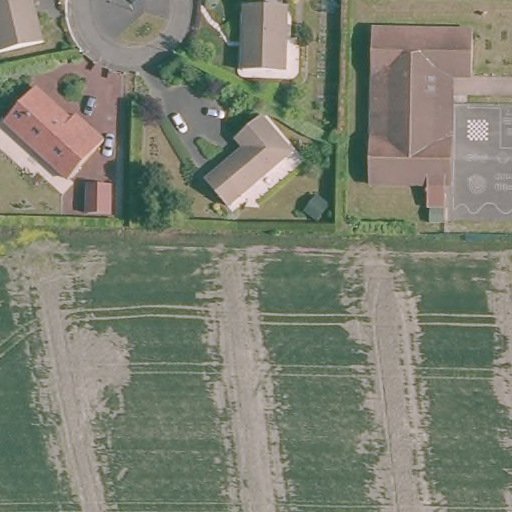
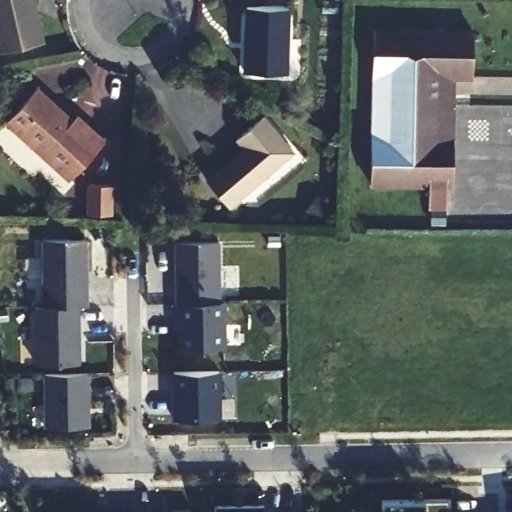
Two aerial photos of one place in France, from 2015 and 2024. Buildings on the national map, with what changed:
unchanged [(0,47),(0,0),(34,0),(40,40),(0,50),(0,47)]
unchanged [(240,71),(240,3),(285,4),(281,71),(240,71)]
unchanged [(429,178),(367,177),(372,23),(472,26),(470,70),(452,69),(449,132),(447,179),(429,178)]
unchanged [(4,122),(32,89),(80,130),(87,124),(103,140),(69,177),(4,122)]
unchanged [(212,176),(247,151),(237,136),(262,115),(294,151),(230,203),(212,176)]
unchanged [(85,216),(86,183),(107,183),(105,216),(85,216)]
new [(85,241),(85,305),(39,304),(39,240),(85,241)]
new [(223,347),(187,348),(185,241),(222,241),(223,347)]
new [(79,308),(80,365),(39,367),(37,307),(79,308)]
new [(86,372),(86,427),(40,427),(40,373),(86,372)]
new [(222,372),(222,420),(177,421),(177,373),(222,372)]
new [(382,502),(424,501),(450,498),(449,512),(383,512),(382,502)]
new [(282,508),(283,512),(220,512),(220,509),(282,508)]

